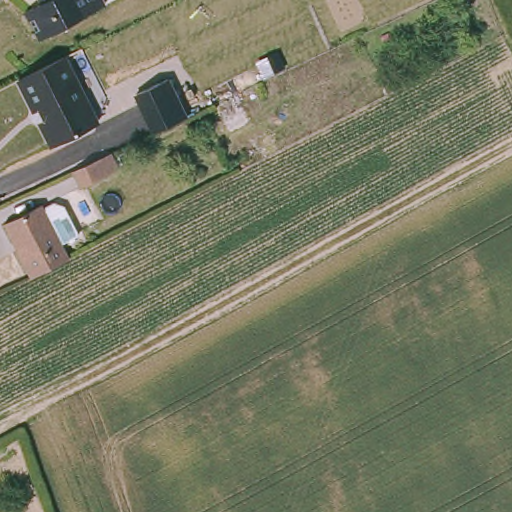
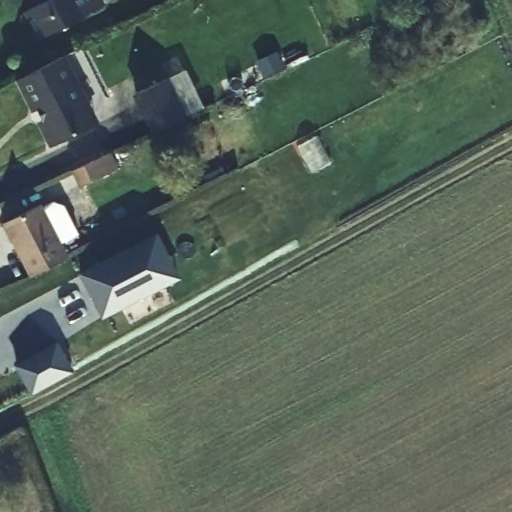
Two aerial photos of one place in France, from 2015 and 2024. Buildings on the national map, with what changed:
unchanged [(37,36),(23,8),(39,0),(100,0),(101,2),(37,36)]
unchanged [(68,52),(101,119),(49,148),(14,79),(68,52)]
new [(186,116),(152,134),(133,97),(168,79),(186,116)]
unchanged [(112,150),(119,167),(81,186),(73,169),(112,150)]
unchanged [(3,226),(40,208),(42,212),(53,206),(63,210),(76,238),(58,247),(64,260),(26,279),(3,226)]
new [(158,233),(181,280),(102,320),(81,274),(158,233)]
new [(33,394),(14,365),(58,341),(74,371),(70,373),(33,394)]

